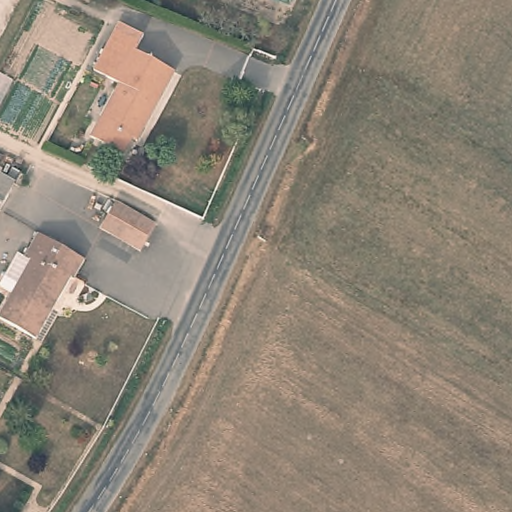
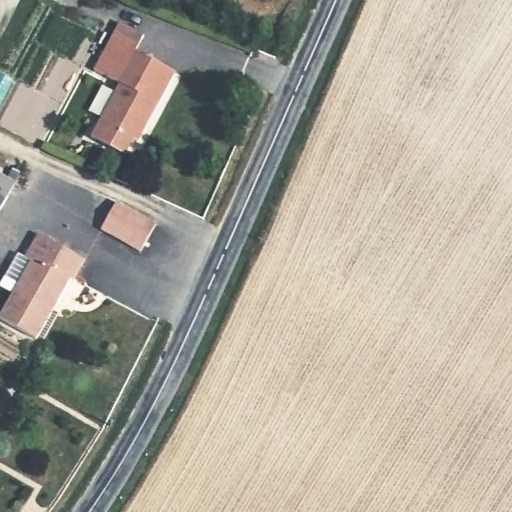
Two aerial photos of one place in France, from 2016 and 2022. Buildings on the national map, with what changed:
unchanged [(119,17),(146,32),(136,46),(174,70),(147,119),(144,116),(124,152),(89,132),(120,77),(93,63),(119,17)]
unchanged [(12,180),(0,202),(0,174),(12,180)]
unchanged [(140,248),(98,228),(115,199),(156,220),(140,248)]
unchanged [(36,232),(82,260),(75,274),(71,272),(34,335),(0,314),(0,311),(15,284),(1,276),(17,247),(25,252),(36,232)]

